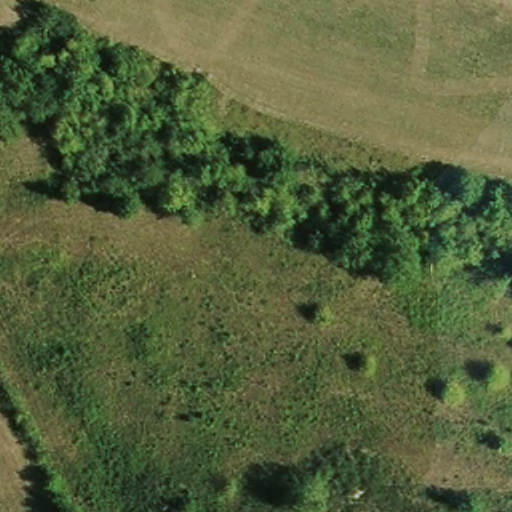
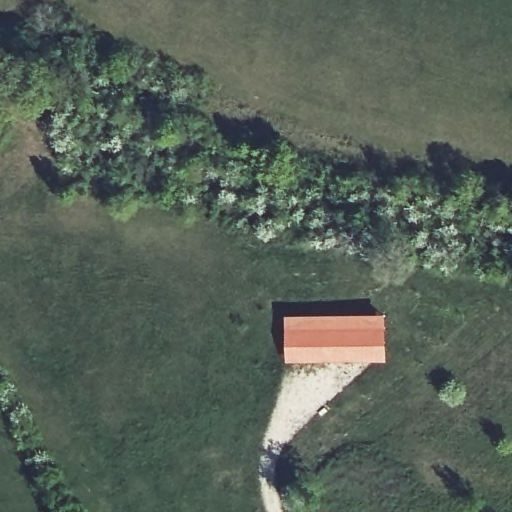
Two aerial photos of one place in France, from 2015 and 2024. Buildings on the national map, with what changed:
new [(377,361),(286,360),(286,316),(377,314),(377,361)]

